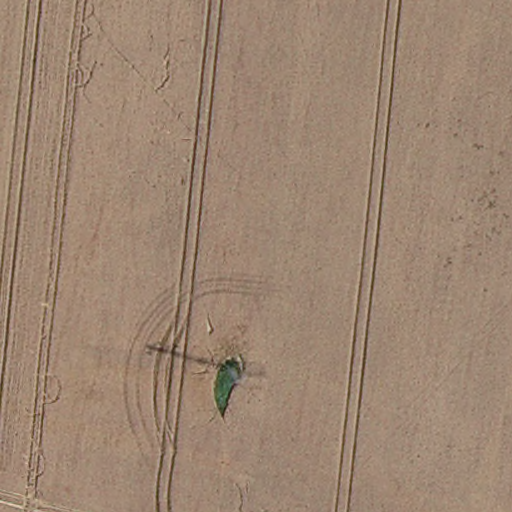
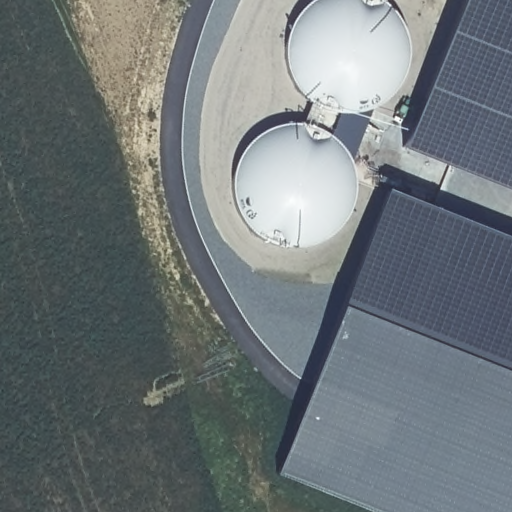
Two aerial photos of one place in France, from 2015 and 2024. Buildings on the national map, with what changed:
new [(463,0),(512,0),(512,191),(404,149),(463,0)]
new [(348,153),(341,144),(333,137),(323,131),(312,126),(301,124),(311,103),(320,109),(331,112),(342,114),(354,114),(364,112),(369,111),(353,163),(348,153)]
new [(386,189),(512,238),(512,512),(367,512),(275,476),(386,189)]

